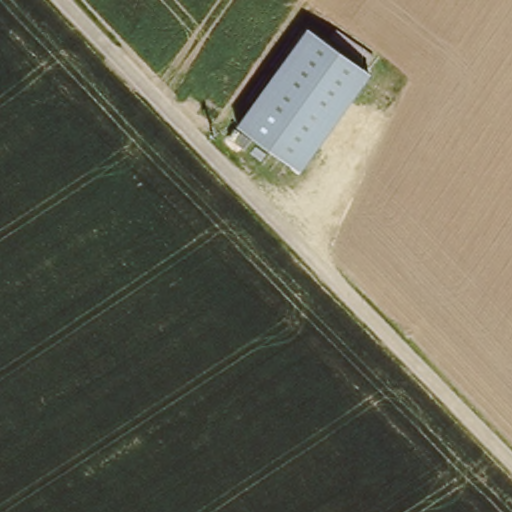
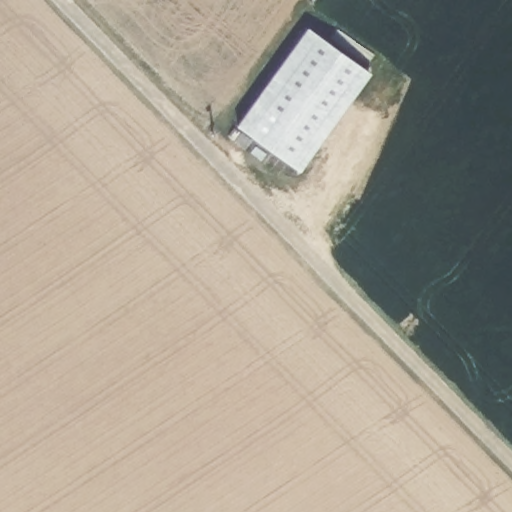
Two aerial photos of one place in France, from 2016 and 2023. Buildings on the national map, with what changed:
unchanged [(309,31),(369,74),(299,171),(239,129),(309,31)]
unchanged [(245,151),(234,143),(240,135),(252,143),(245,151)]

